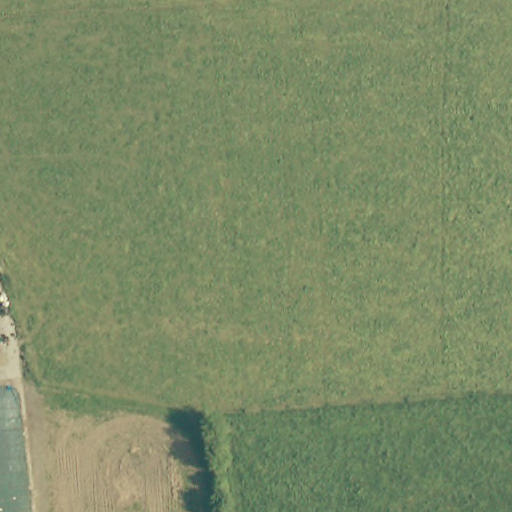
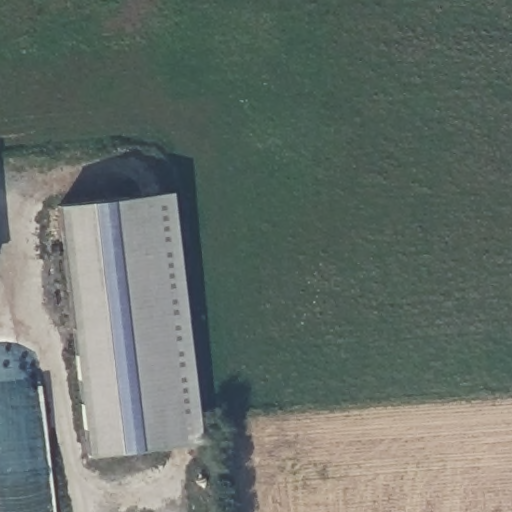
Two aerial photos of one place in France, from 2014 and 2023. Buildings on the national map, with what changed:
new [(154,194),(183,445),(86,457),(56,207),(154,194)]

